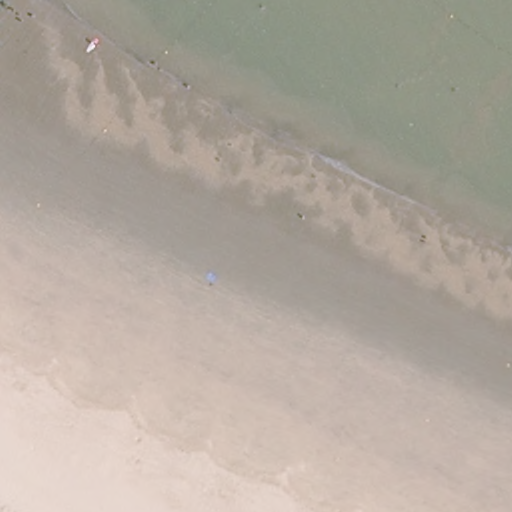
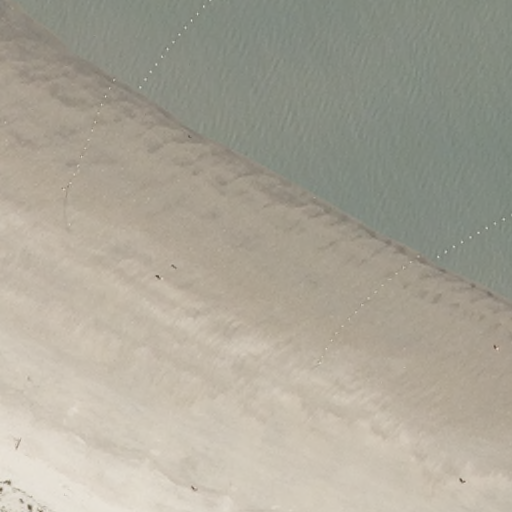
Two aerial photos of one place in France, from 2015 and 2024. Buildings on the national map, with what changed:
[]

